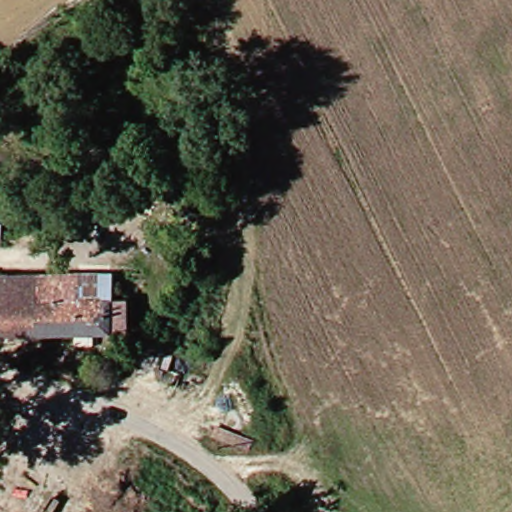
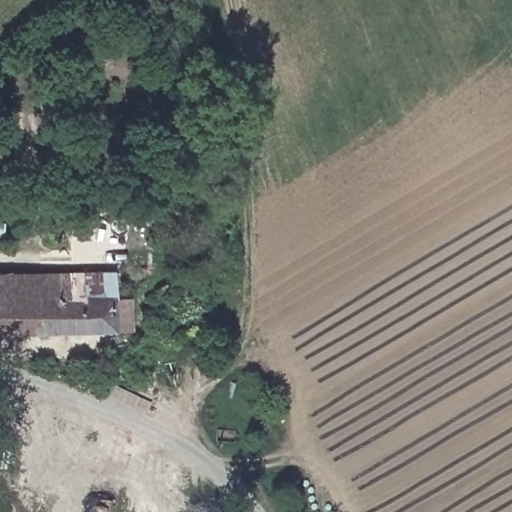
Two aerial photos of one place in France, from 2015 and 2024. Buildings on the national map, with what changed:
unchanged [(95,235),(91,217),(114,211),(118,229),(95,235)]
unchanged [(4,240),(0,240),(0,219),(6,220),(4,240)]
unchanged [(131,329),(0,329),(0,273),(40,274),(40,280),(65,280),(65,300),(131,300),(131,329)]

